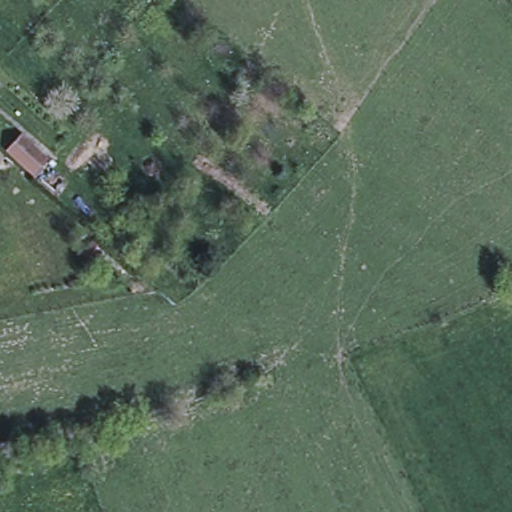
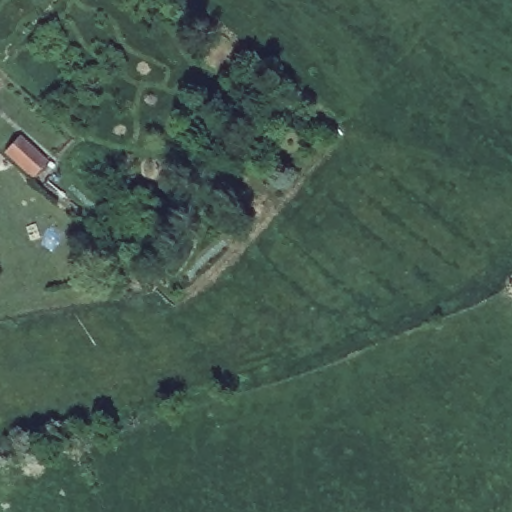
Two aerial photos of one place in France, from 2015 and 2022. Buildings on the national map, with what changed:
unchanged [(38,173),(18,157),(9,149),(20,135),(29,144),(49,160),(38,173)]

